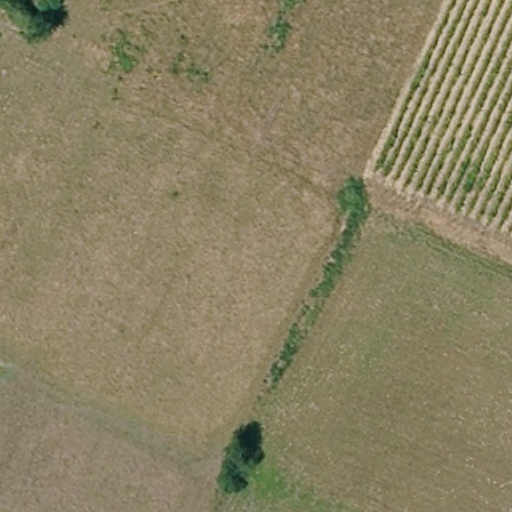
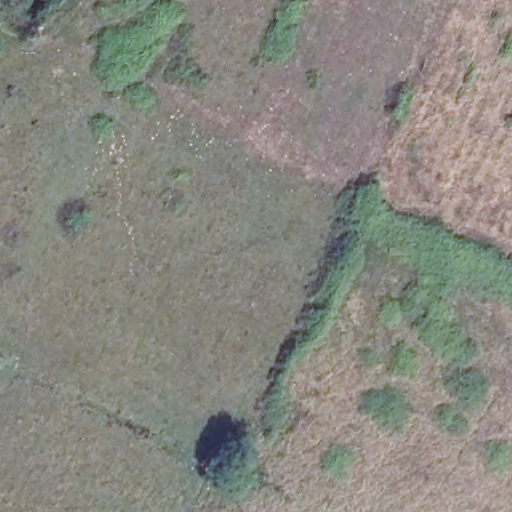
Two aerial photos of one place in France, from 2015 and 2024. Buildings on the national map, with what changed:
[]

